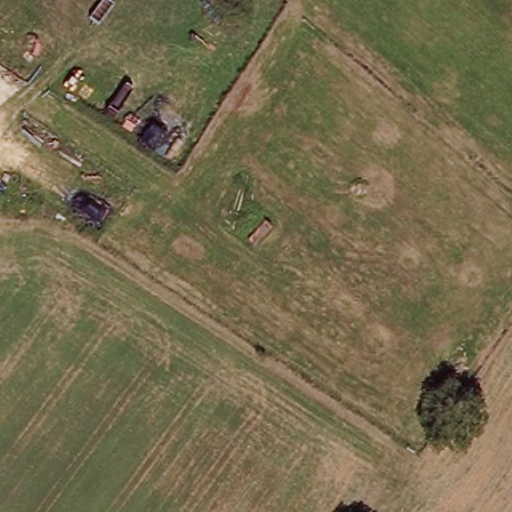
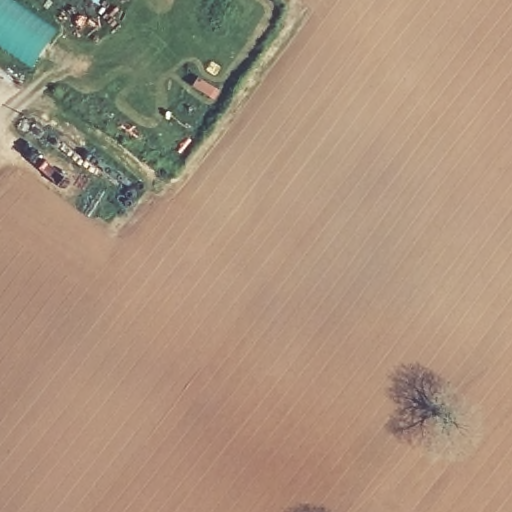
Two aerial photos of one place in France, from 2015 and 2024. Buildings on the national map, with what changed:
new [(0,45),(0,0),(15,0),(58,29),(33,68),(0,45)]

